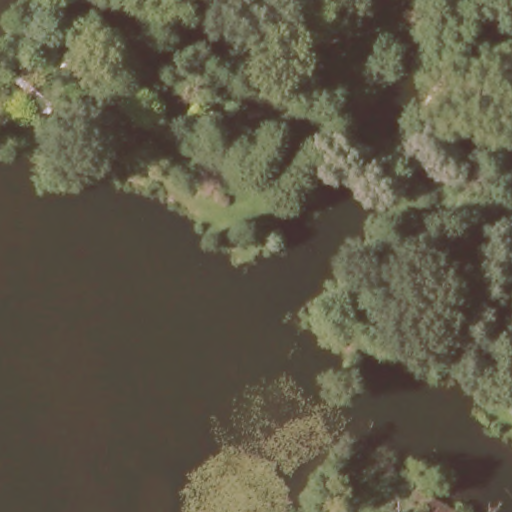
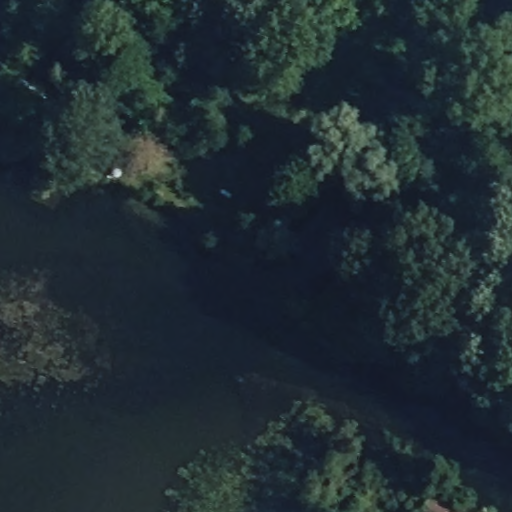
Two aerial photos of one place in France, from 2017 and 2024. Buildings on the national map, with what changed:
unchanged [(512,31),(512,39),(509,37),(512,31)]
unchanged [(405,507),(415,491),(450,512),(414,512),(405,507)]
unchanged [(370,499),(385,507),(381,512),(363,512),(370,499)]

